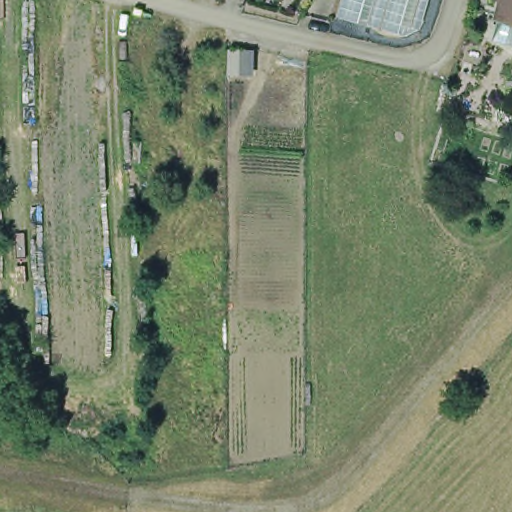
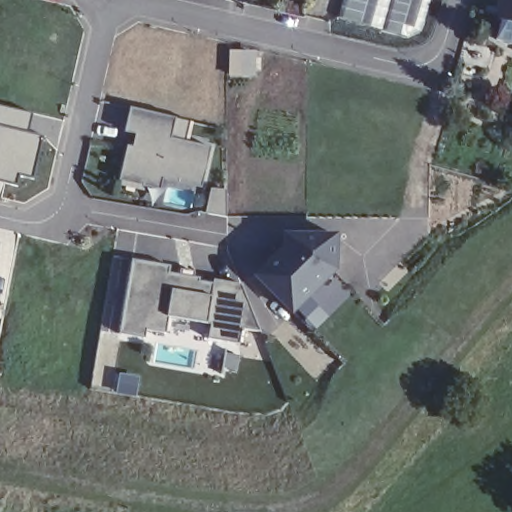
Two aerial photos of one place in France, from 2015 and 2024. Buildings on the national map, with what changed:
unchanged [(351,0),(398,0),(389,30),(346,18),(351,0)]
unchanged [(411,37),(389,30),(398,0),(439,0),(432,24),(411,37)]
unchanged [(512,0),(512,43),(500,39),(505,19),(502,18),(507,0),(512,0)]
unchanged [(254,44),(254,78),(233,78),(232,44),(254,44)]
new [(27,132),(43,136),(34,179),(19,175),(18,186),(0,182),(0,107),(30,114),(27,132)]
new [(210,148),(201,188),(161,179),(159,189),(118,180),(126,145),(132,146),(135,134),(124,131),(130,108),(173,118),(169,138),(210,148)]
new [(281,233),(337,234),(337,270),(290,315),(252,275),(281,247),(281,233)]
new [(168,274),(199,279),(198,282),(213,284),(214,280),(240,284),(259,331),(241,329),(238,344),(208,339),(210,324),(206,323),(169,317),(166,333),(145,330),(144,338),(118,334),(131,261),(168,266),(168,274)]

